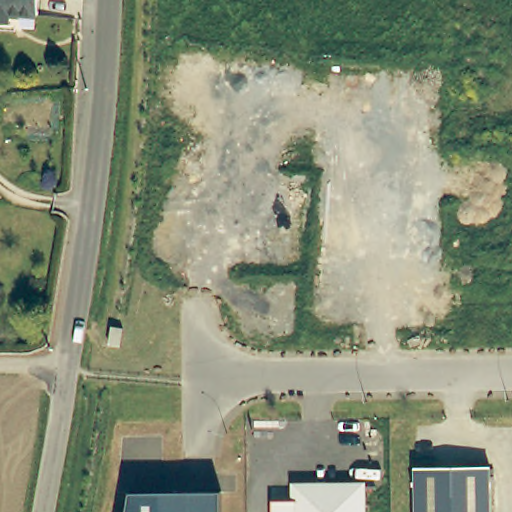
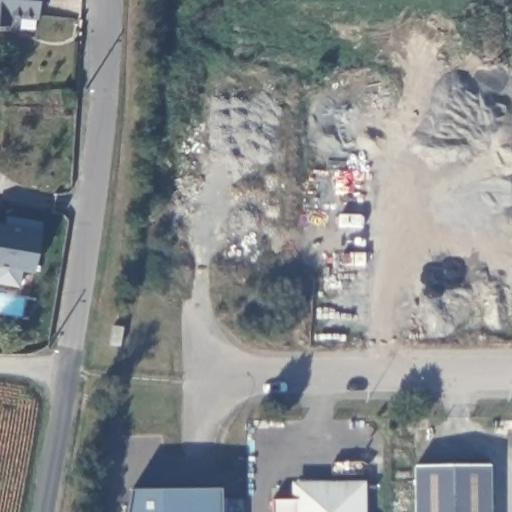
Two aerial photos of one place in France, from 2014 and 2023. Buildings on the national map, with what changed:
unchanged [(38,0),(37,19),(7,18),(6,27),(0,27),(0,0),(38,0)]
new [(41,230),(34,272),(21,270),(18,285),(0,282),(0,221),(6,223),(6,214),(42,220),(41,230)]
unchanged [(131,338),(128,357),(117,355),(120,336),(131,338)]
unchanged [(492,467),(493,512),(418,512),(417,468),(492,467)]
unchanged [(270,502),(306,502),(305,489),(359,488),(359,512),(270,512),(270,502)]
unchanged [(138,505),(229,503),(229,512),(137,512),(138,505)]

